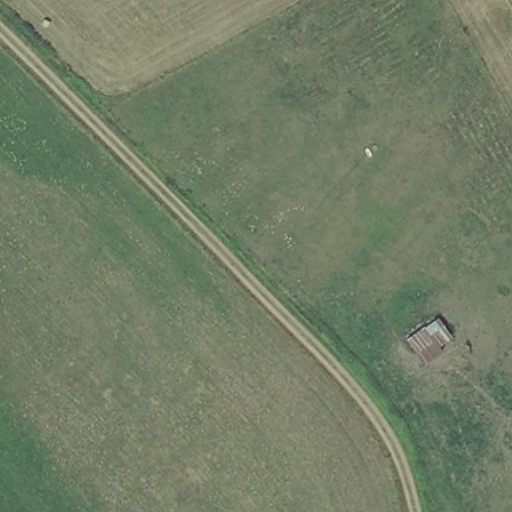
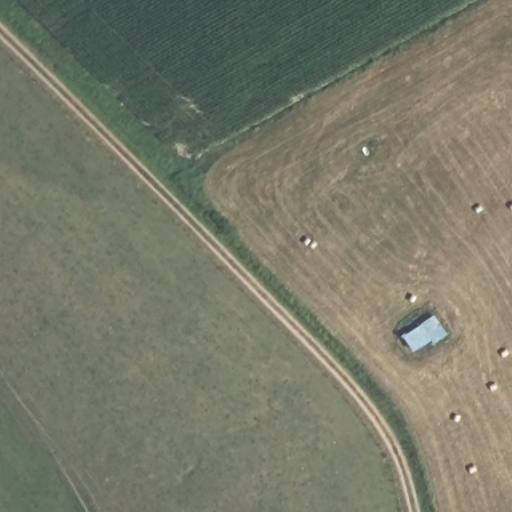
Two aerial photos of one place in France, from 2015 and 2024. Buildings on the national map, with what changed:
unchanged [(449,307),(466,342),(419,366),(402,336),(449,307)]

